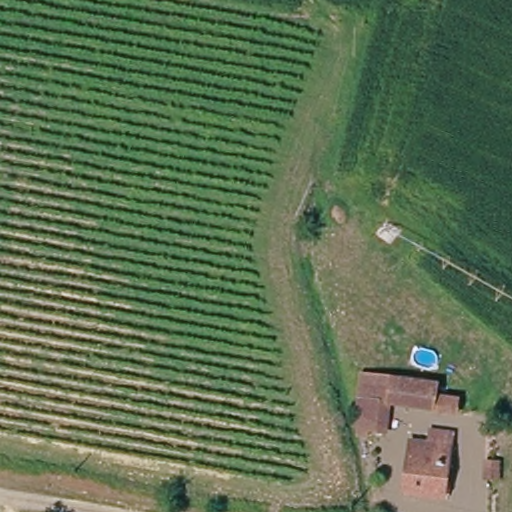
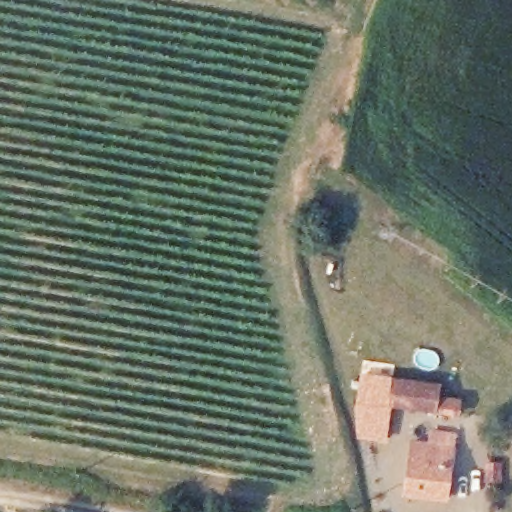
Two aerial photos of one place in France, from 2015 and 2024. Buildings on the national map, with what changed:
unchanged [(374,437),(373,442),(364,442),(362,432),(362,417),(361,417),(367,380),(442,391),(440,403),(462,407),(460,420),(416,413),(394,410),(390,438),(374,437)]
unchanged [(409,495),(415,443),(434,446),(436,433),(458,435),(449,500),(409,495)]
unchanged [(486,463),(498,464),(498,482),(486,482),(486,463)]

